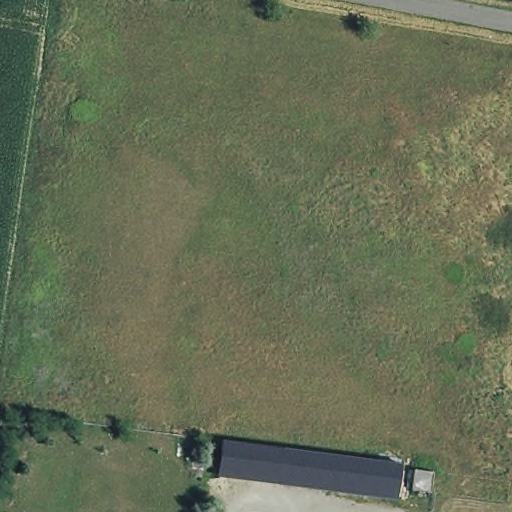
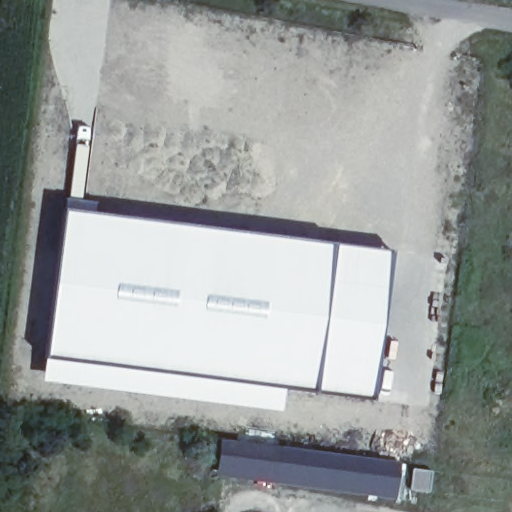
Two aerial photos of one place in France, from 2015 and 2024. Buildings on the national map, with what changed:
new [(391,249),(375,399),(45,362),(67,209),(391,249)]
new [(221,439),(401,463),(396,499),(216,476),(221,439)]
new [(432,468),(430,492),(411,488),(414,466),(432,468)]

